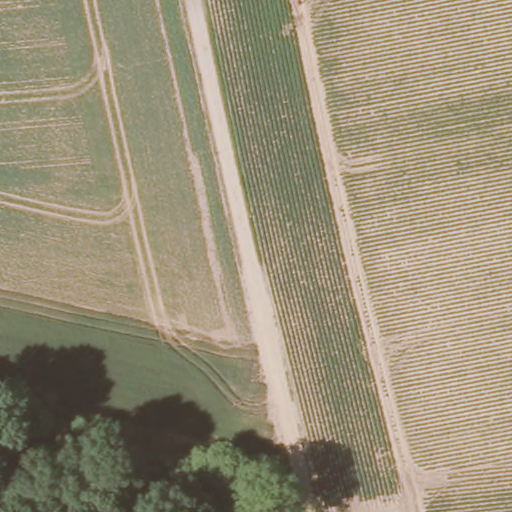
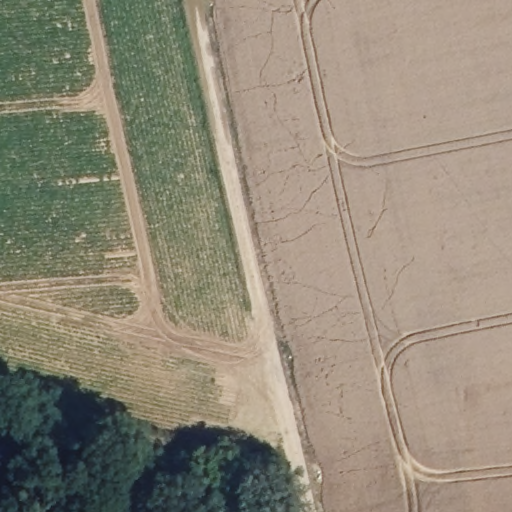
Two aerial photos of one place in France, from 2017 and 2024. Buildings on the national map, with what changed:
[]

